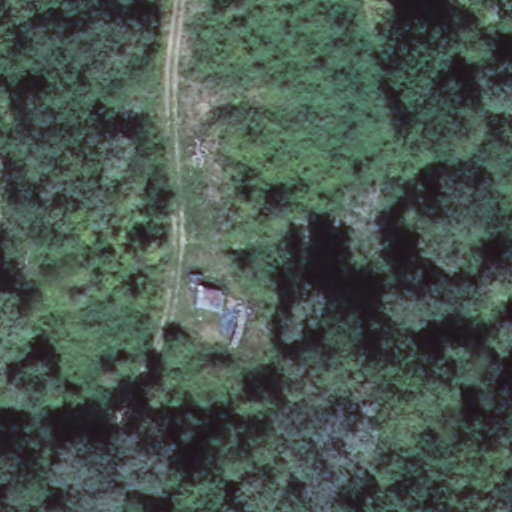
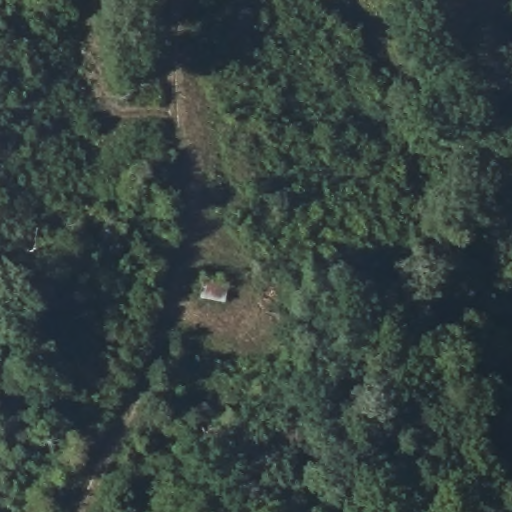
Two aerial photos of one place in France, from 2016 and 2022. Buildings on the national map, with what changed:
unchanged [(240,281),(240,304),(204,299),(205,279),(240,281)]

